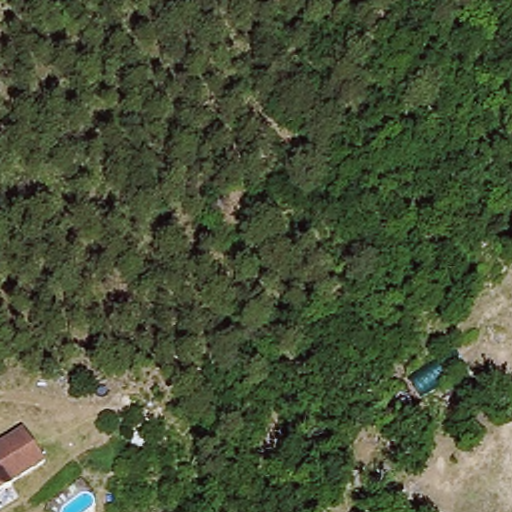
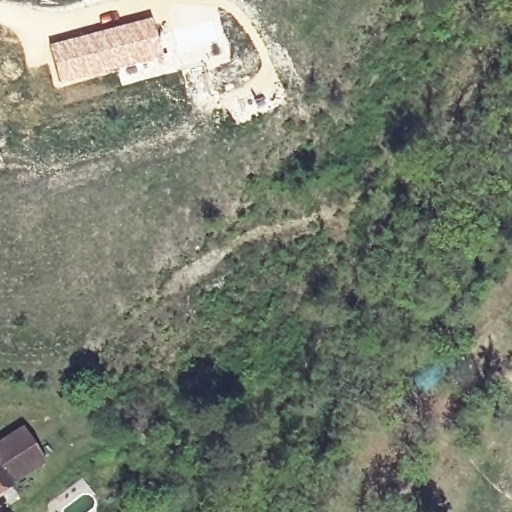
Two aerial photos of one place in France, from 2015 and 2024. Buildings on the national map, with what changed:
new [(153,20),(161,55),(59,81),(50,47),(153,20)]
unchanged [(0,434),(20,420),(48,459),(9,483),(9,491),(0,497),(0,434)]

